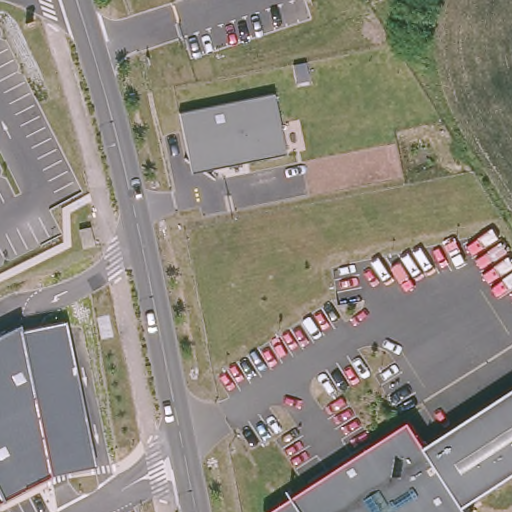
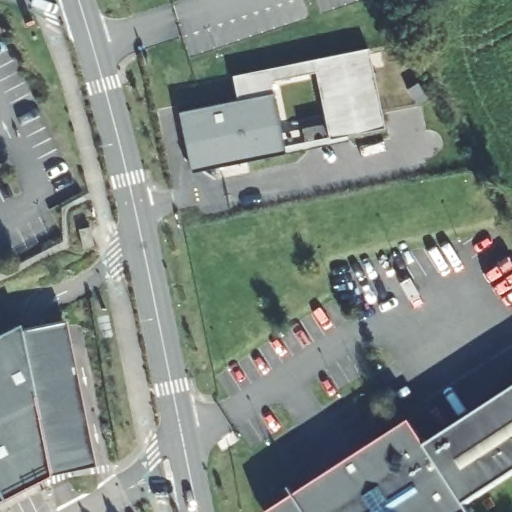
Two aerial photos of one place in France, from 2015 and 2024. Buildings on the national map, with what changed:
new [(314,72),(272,80),(274,93),(237,101),(232,76),(369,47),(385,127),(327,138),(314,72)]
unchanged [(285,154),(190,173),(178,113),(274,93),(285,154)]
unchanged [(89,226),(93,245),(82,247),(78,230),(89,226)]
unchanged [(50,475),(2,500),(0,501),(0,334),(19,325),(20,330),(65,321),(94,466),(50,475)]
unchanged [(426,446),(512,391),(512,475),(465,505),(470,512),(269,512),(410,421),(426,446)]

